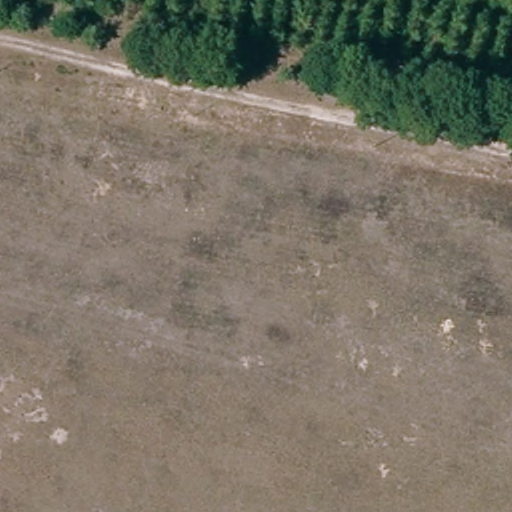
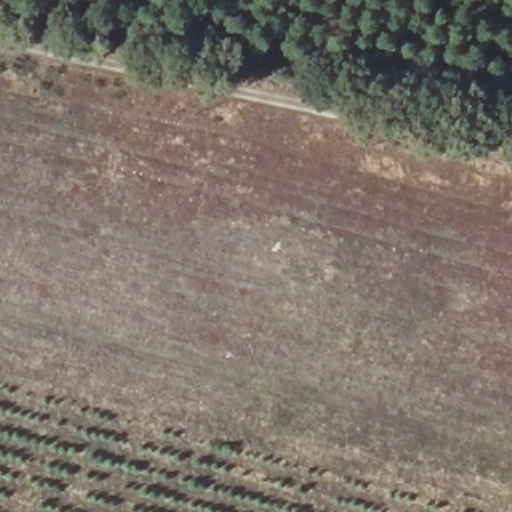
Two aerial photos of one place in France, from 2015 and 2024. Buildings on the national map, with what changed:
[]

